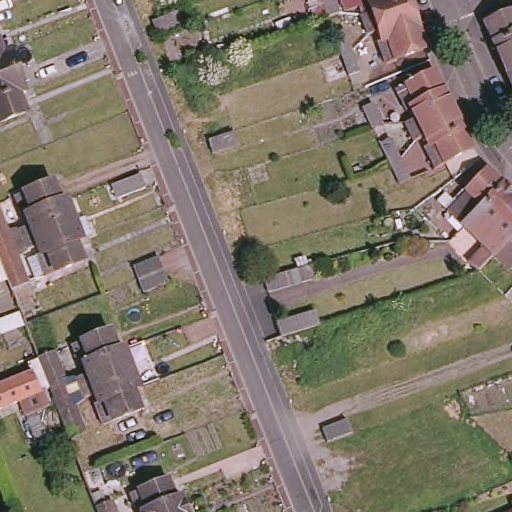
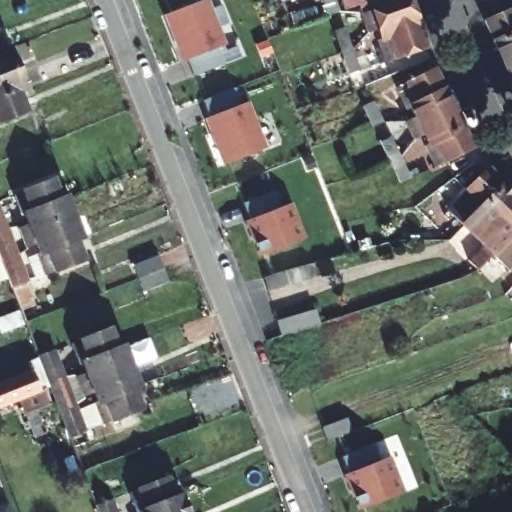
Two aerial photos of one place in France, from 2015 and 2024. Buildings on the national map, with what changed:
new [(215,28),(218,27),(225,44),(218,47),(224,63),(194,75),(182,44),(179,46),(166,14),(200,0),(205,0),(215,28)]
unchanged [(329,16),(323,0),(336,0),(340,12),(329,16)]
unchanged [(398,49),(386,53),(386,51),(378,30),(383,28),(381,20),(369,24),(362,2),(367,0),(413,0),(419,16),(426,37),(397,47),(398,49)]
unchanged [(501,57),(492,37),(483,17),(511,5),(512,7),(512,84),(509,77),(501,57)]
unchanged [(351,43),(361,70),(349,74),(342,55),(334,30),(346,26),(351,43)]
unchanged [(4,53),(11,50),(26,88),(19,91),(26,111),(0,120),(0,42),(4,53)]
unchanged [(416,132),(407,112),(411,111),(418,107),(417,104),(413,97),(407,100),(399,80),(398,77),(407,73),(408,75),(436,62),(446,81),(464,117),(431,133),(428,127),(416,133),(416,132)]
new [(240,104),(247,101),(254,118),(251,119),(263,149),(225,163),(212,131),(215,130),(203,100),(234,87),(240,104)]
unchanged [(371,126),(362,107),(373,101),(382,121),(371,126)]
unchanged [(447,151),(448,154),(437,159),(436,157),(426,135),(431,133),(464,117),(475,138),(447,151)]
demolished [(213,152),(209,140),(207,137),(231,127),(234,132),(238,141),(213,152)]
unchanged [(399,185),(392,169),(389,164),(380,144),(391,139),(399,154),(401,159),(411,180),(399,185)]
unchanged [(485,259),(481,261),(478,262),(476,260),(470,254),(479,245),(487,237),(485,235),(465,216),(449,200),(489,159),(506,175),(512,181),(512,257),(511,259),(497,246),(489,254),(488,256),(485,259)]
unchanged [(55,194),(50,196),(43,198),(48,210),(29,216),(29,214),(25,206),(22,208),(13,185),(24,181),(24,182),(54,171),(61,191),(55,194)]
unchanged [(19,217),(29,214),(29,216),(48,210),(43,198),(50,196),(55,194),(61,191),(69,189),(84,228),(77,231),(68,234),(58,238),(54,226),(50,227),(49,228),(36,232),(37,235),(29,238),(26,239),(17,218),(19,217)]
new [(260,255),(254,238),(257,237),(243,202),(274,190),(280,206),(290,202),(298,222),(304,237),(296,240),(260,255)]
unchanged [(0,266),(0,222),(1,225),(11,250),(22,278),(7,284),(0,266)]
unchanged [(36,232),(49,228),(50,227),(54,226),(58,238),(68,234),(77,231),(84,251),(55,262),(56,265),(46,269),(36,246),(41,245),(37,235),(36,232)]
unchanged [(143,293),(138,280),(134,268),(159,259),(164,271),(169,284),(143,293)]
unchanged [(265,276),(291,269),(293,276),(296,283),(269,291),(266,282),(265,276)]
unchanged [(316,311),(320,324),(284,337),(279,323),(316,311)]
unchanged [(97,417),(89,394),(92,393),(89,385),(80,389),(79,389),(78,390),(71,368),(73,368),(82,364),(79,357),(75,358),(65,336),(76,331),(77,333),(107,321),(115,342),(122,340),(136,376),(129,379),(137,399),(107,411),(107,412),(97,417)]
unchanged [(54,402),(44,375),(42,370),(34,350),(51,343),(60,369),(71,395),(80,420),(64,426),(54,402)]
unchanged [(28,363),(36,382),(41,380),(46,396),(32,401),(41,424),(31,428),(16,390),(0,396),(0,373),(28,363)]
unchanged [(349,417),(353,429),(328,440),(324,426),(349,417)]
new [(343,459),(374,447),(380,462),(389,459),(399,484),(390,487),(391,492),(384,494),(386,499),(357,511),(344,476),(349,474),(343,459)]
unchanged [(137,505),(128,482),(139,478),(139,480),(169,468),(177,490),(184,487),(194,512),(144,512),(141,504),(137,505)]
unchanged [(112,500),(117,512),(98,512),(96,506),(112,500)]

